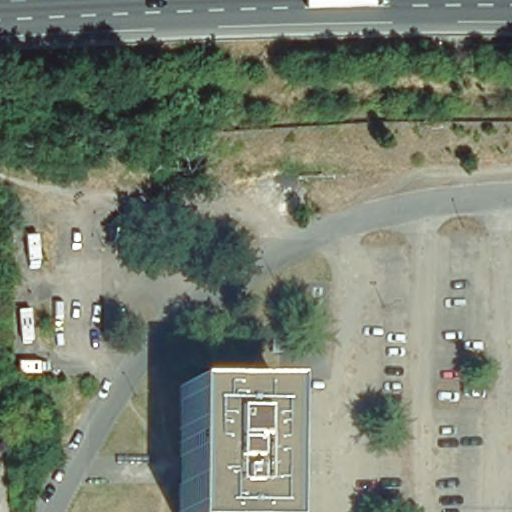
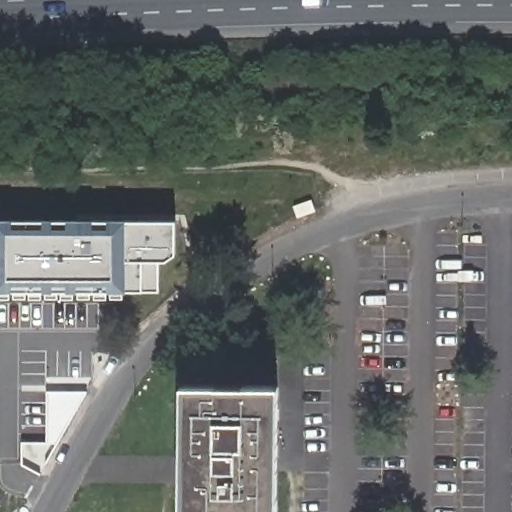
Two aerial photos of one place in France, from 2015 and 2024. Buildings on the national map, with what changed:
new [(176,221),(176,254),(165,261),(159,261),(159,291),(142,291),(126,291),(126,292),(0,292),(0,219),(176,221)]
unchanged [(185,387),(274,388),(274,455),(273,512),(184,512),(185,458),(185,387)]
new [(84,393),(56,444),(48,444),(49,393),(84,393)]
new [(1,506),(0,507),(0,504),(1,506)]

